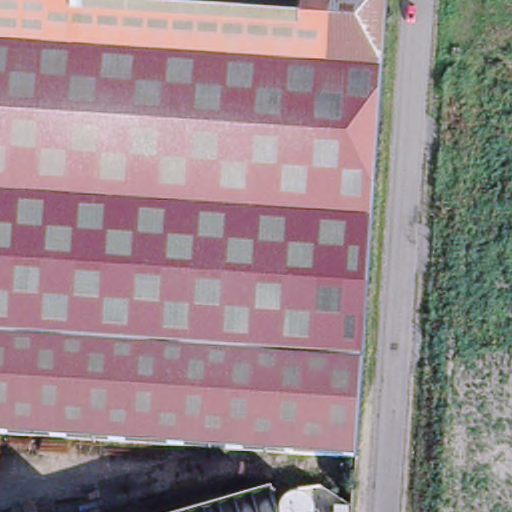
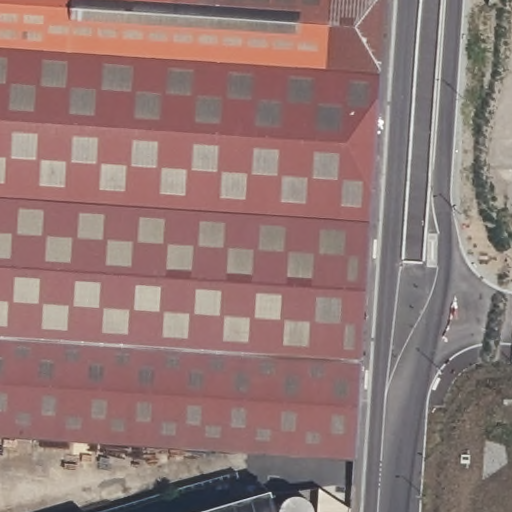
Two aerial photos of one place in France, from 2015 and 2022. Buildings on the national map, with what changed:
unchanged [(355,456),(0,434),(0,0),(387,0),(355,456)]
unchanged [(271,494),(276,512),(210,512),(235,505),(271,494)]

